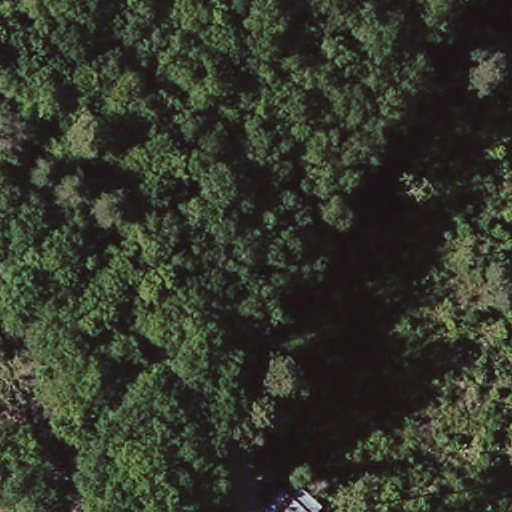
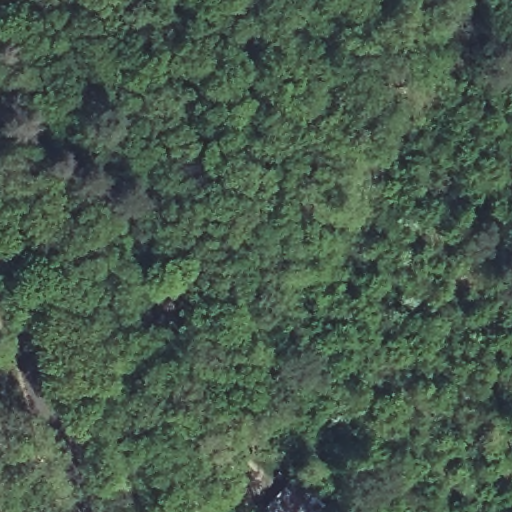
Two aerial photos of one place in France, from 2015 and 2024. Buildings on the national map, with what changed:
unchanged [(308,512),(273,512),(269,507),(291,488),(308,512)]

